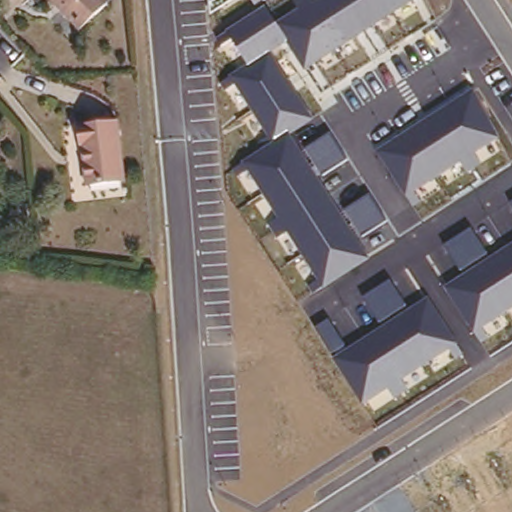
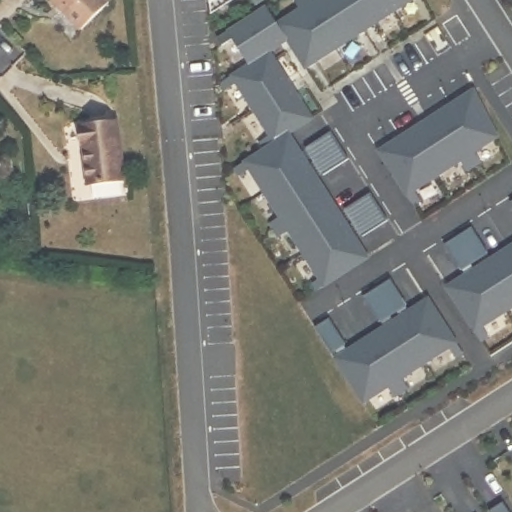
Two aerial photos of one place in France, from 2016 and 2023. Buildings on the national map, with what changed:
unchanged [(114,2),(87,27),(60,0),(112,0),(114,2)]
unchanged [(210,6),(209,0),(219,0),(210,6)]
unchanged [(288,234),(277,240),(267,225),(278,217),(242,161),(273,142),(229,74),(244,63),(229,41),(220,48),(214,37),(264,6),(277,24),(297,9),(292,0),(415,0),(305,70),(287,42),(270,55),(312,121),(291,136),(301,152),(330,132),(349,161),(318,180),(339,214),(370,192),(387,220),(357,242),(369,260),(323,289),(288,234)]
unchanged [(376,151),(472,90),(501,135),(404,197),(376,151)]
unchanged [(118,120),(124,179),(87,184),(84,144),(83,144),(80,125),(118,120)]
unchanged [(512,201),(512,209),(508,204),(512,201)]
unchanged [(462,272),(445,246),(472,229),(490,255),(512,240),(512,308),(472,333),(442,285),(462,272)]
unchanged [(312,330),(329,317),(347,346),(382,323),(362,295),(391,277),(410,307),(426,297),(457,345),(361,403),(312,330)]
new [(510,512),(491,512),(505,503),(510,512)]

